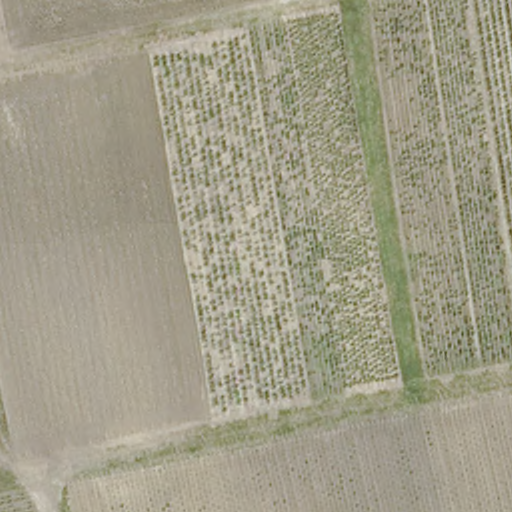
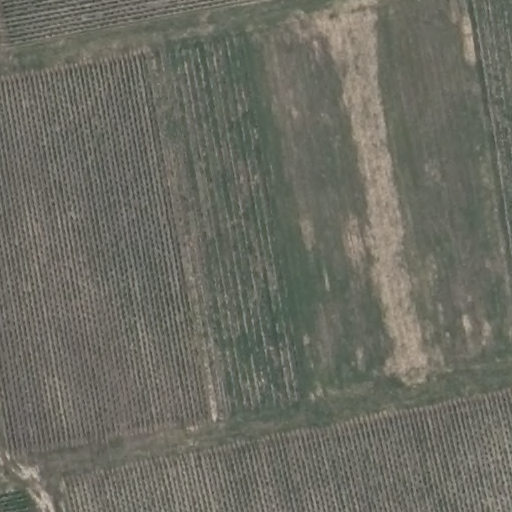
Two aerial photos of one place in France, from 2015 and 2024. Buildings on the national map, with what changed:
[]

